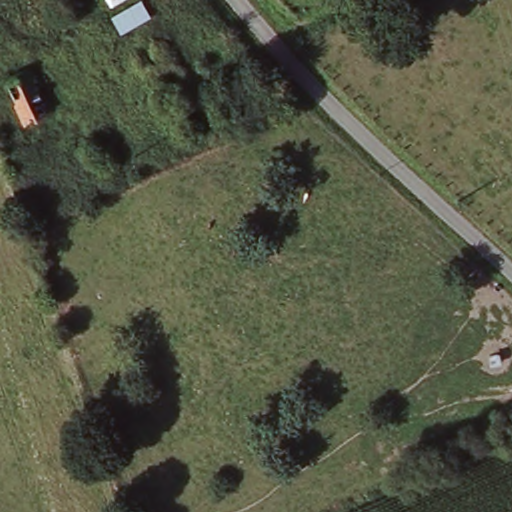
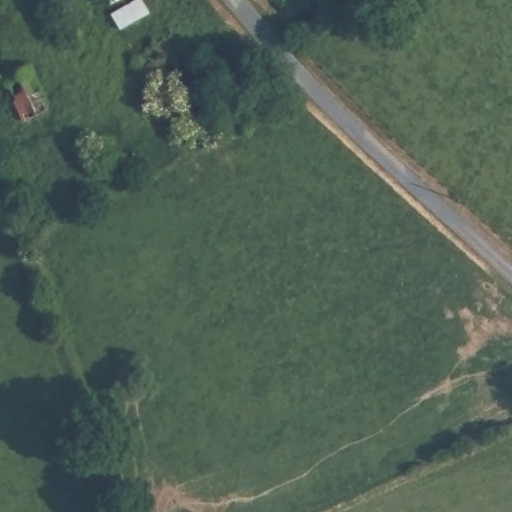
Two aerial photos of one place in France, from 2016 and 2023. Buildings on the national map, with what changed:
unchanged [(135,0),(140,0),(156,30),(130,45),(110,14),(135,0)]
unchanged [(28,71),(47,110),(26,122),(5,82),(28,71)]

